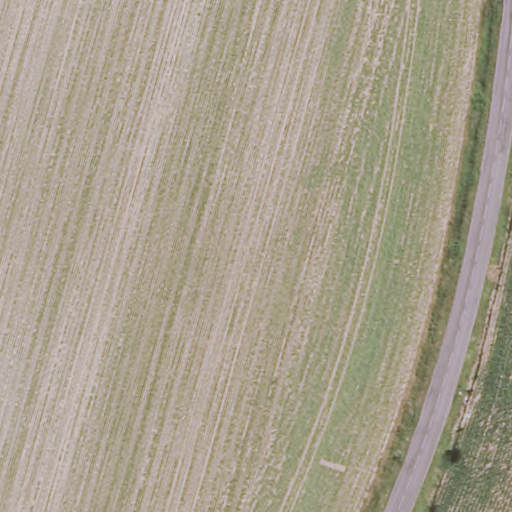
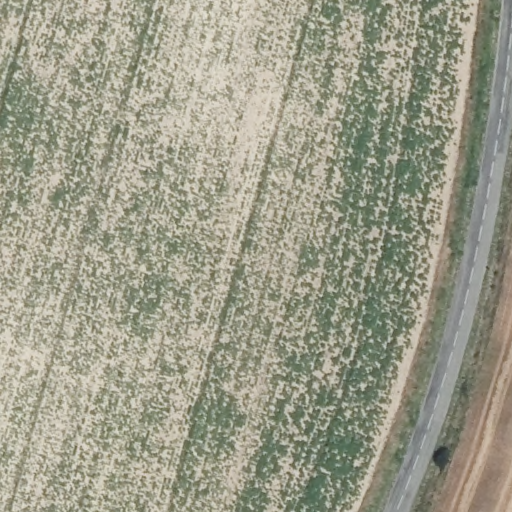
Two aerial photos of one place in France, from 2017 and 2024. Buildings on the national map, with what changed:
[]

